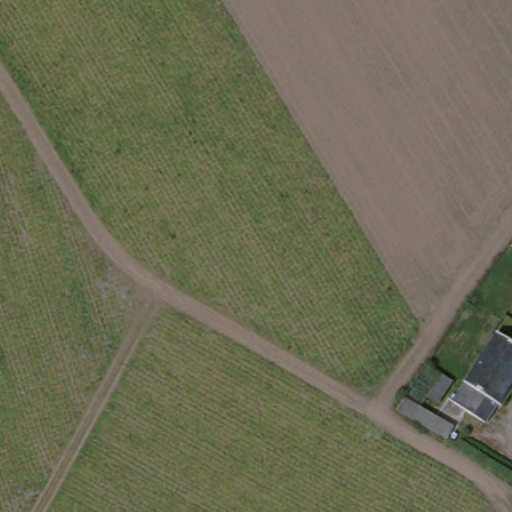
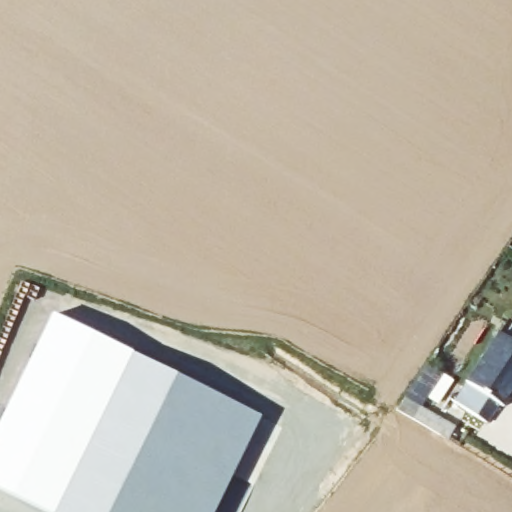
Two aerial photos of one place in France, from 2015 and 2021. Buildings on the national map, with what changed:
new [(53,313),(222,393),(166,512),(52,512),(0,487),(0,425),(53,313)]
unchanged [(512,399),(509,403),(506,401),(491,424),(456,402),(500,328),(512,335),(512,399)]
new [(222,393),(262,412),(214,512),(166,512),(222,393)]
unchanged [(415,423),(449,440),(444,452),(409,435),(415,423)]

